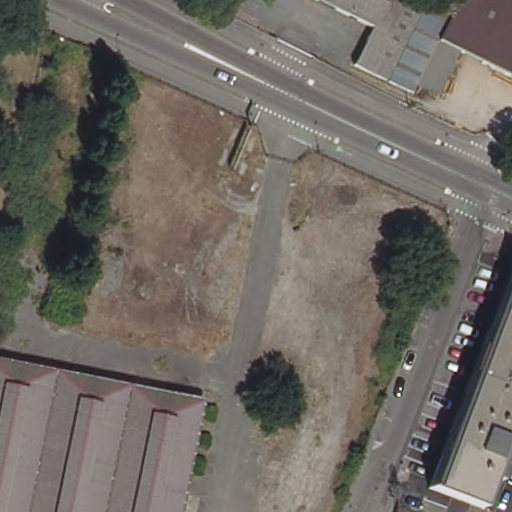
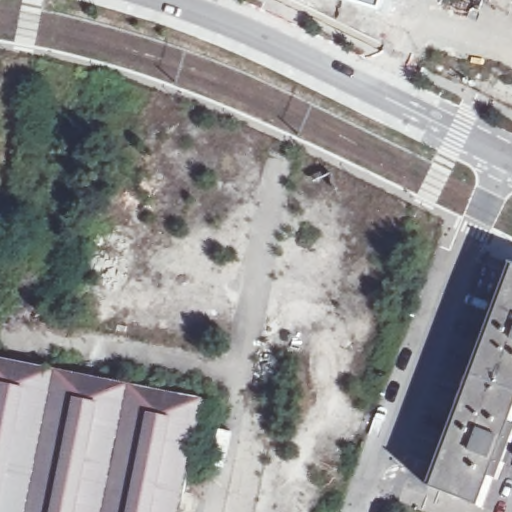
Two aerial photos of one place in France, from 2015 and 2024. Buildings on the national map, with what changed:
demolished [(319,0),(390,0),(375,28),(319,0)]
demolished [(431,0),(444,6),(456,12),(441,42),(417,95),(358,66),(375,28),(390,0),(431,0)]
demolished [(462,0),(512,0),(512,77),(441,42),(456,12),(462,0)]
unchanged [(501,476),(494,473),(482,504),(430,484),(442,452),(447,454),(505,298),(501,296),(512,268),(512,448),(501,476)]
unchanged [(184,492),(0,437),(0,359),(203,400),(184,492)]
unchanged [(182,499),(191,501),(190,512),(0,512),(0,437),(184,492),(182,499)]

